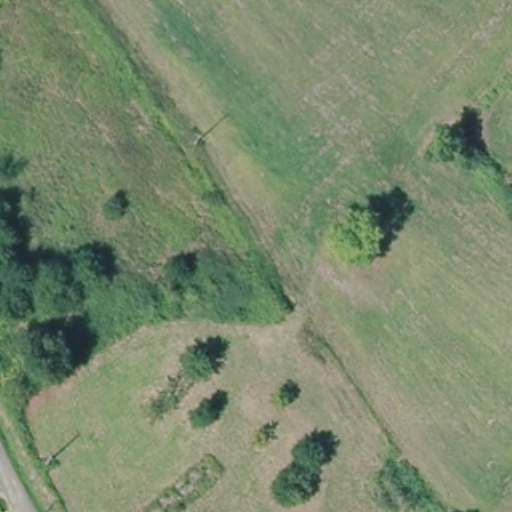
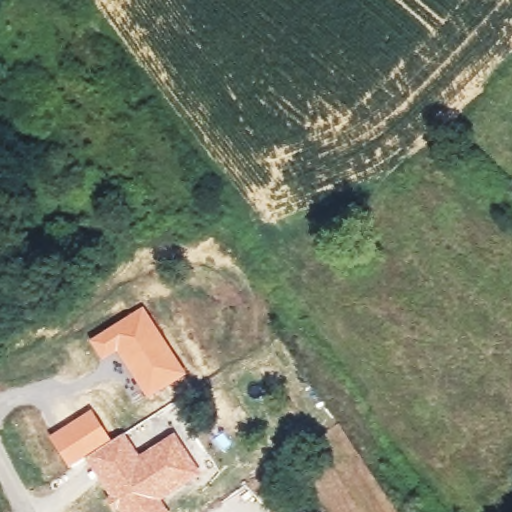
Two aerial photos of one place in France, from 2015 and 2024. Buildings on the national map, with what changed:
new [(142,305),(187,372),(147,397),(117,351),(102,360),(89,340),(142,305)]
new [(92,408),(112,441),(86,457),(69,467),(50,436),(92,408)]
new [(125,432),(139,454),(175,432),(202,473),(162,500),(169,512),(120,512),(86,457),(112,441),(125,432)]

